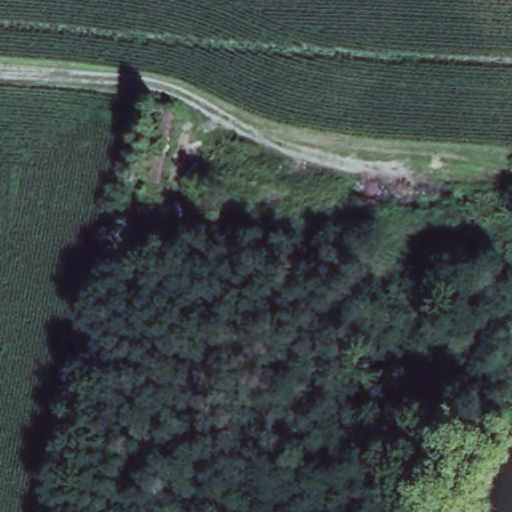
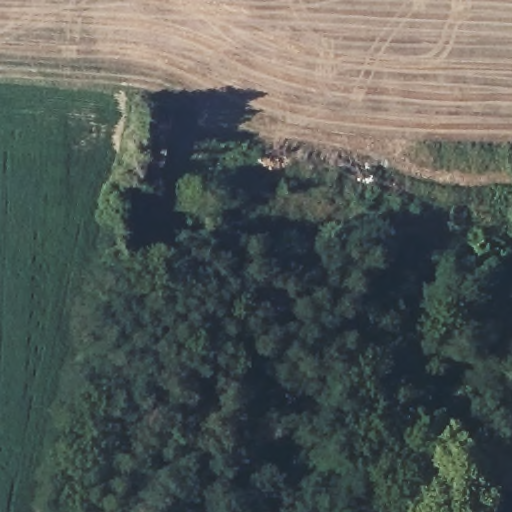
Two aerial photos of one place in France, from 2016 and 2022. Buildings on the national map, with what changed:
unchanged [(177,108),(165,184),(144,181),(155,105),(177,108)]

